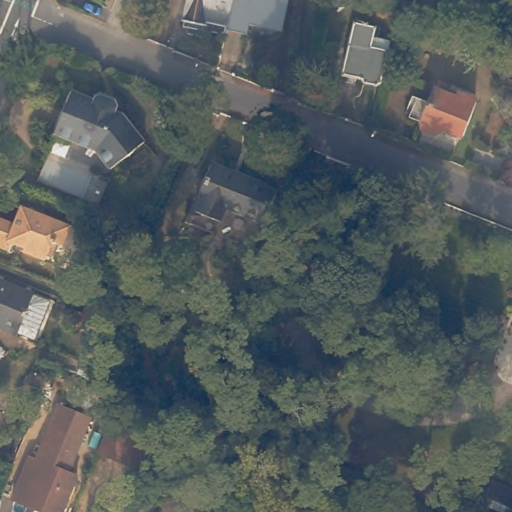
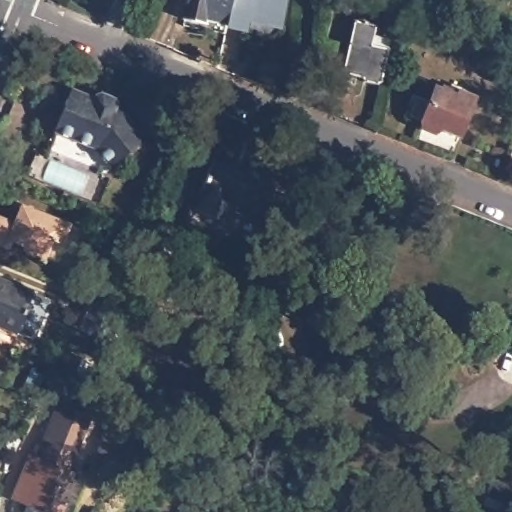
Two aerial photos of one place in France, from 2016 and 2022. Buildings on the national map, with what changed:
unchanged [(199,25),(179,21),(183,0),(227,0),(222,25),(200,20),(199,25)]
unchanged [(280,0),(275,26),(244,19),(240,29),(222,25),(227,0),(280,0)]
unchanged [(334,60),(345,18),(365,24),(363,32),(381,37),(370,80),(365,83),(353,80),(351,75),(331,69),(334,60)]
unchanged [(447,94),(449,91),(472,99),(457,137),(420,122),(435,89),(447,94)]
unchanged [(57,126),(70,94),(94,102),(95,98),(100,97),(114,102),(116,107),(114,113),(122,117),(143,144),(109,170),(95,152),(70,142),(54,136),(57,126)]
unchanged [(219,221),(194,211),(198,199),(196,198),(210,164),(237,175),(224,210),(219,221)]
unchanged [(237,175),(275,190),(261,225),(224,210),(237,175)]
unchanged [(62,246),(54,242),(47,260),(25,251),(25,247),(14,242),(10,252),(0,248),(0,222),(15,227),(22,209),(70,227),(62,246)]
unchanged [(18,291),(35,297),(20,335),(3,328),(2,331),(0,330),(0,281),(19,288),(18,291)]
unchanged [(89,316),(95,300),(125,312),(114,341),(99,336),(83,330),(89,316)]
unchanged [(119,397),(112,412),(98,407),(105,391),(119,397)]
unchanged [(90,417),(81,442),(68,470),(77,474),(61,512),(54,512),(12,495),(28,453),(40,458),(44,448),(42,444),(57,405),(90,417)]
unchanged [(111,422),(148,438),(136,466),(100,450),(111,422)]
unchanged [(161,493),(154,512),(140,512),(149,489),(161,493)]

